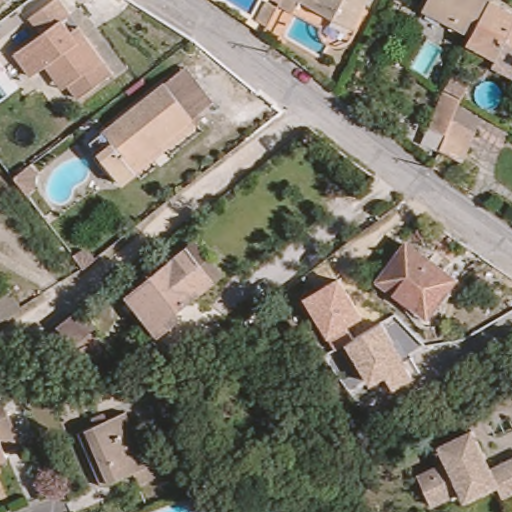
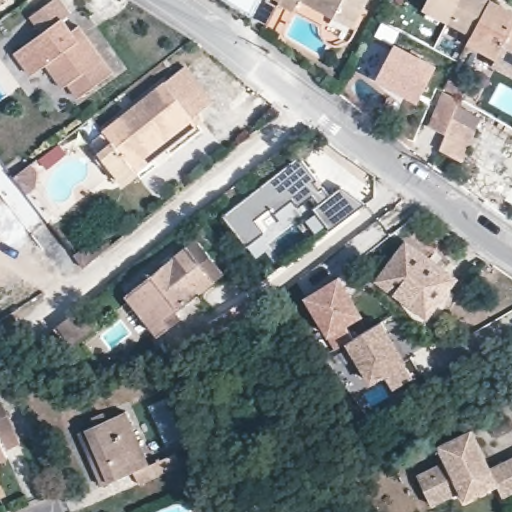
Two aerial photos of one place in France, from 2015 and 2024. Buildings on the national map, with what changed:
unchanged [(0,8),(0,0),(6,0),(8,2),(0,8)]
unchanged [(35,11),(50,0),(69,0),(75,7),(67,13),(77,25),(84,20),(117,66),(83,91),(73,79),(68,82),(50,59),(37,69),(20,47),(47,27),(35,11)]
unchanged [(356,27),(304,1),(298,12),(284,5),(286,0),(370,0),(356,27)]
unchanged [(472,30),(424,5),(426,0),(487,0),(472,30)]
unchanged [(487,0),(500,0),(512,7),(512,46),(503,42),(497,53),(467,38),(472,30),(487,0)]
unchanged [(262,21),(272,1),(283,8),(273,28),(262,21)]
new [(394,42),(436,64),(416,103),(374,81),(394,42)]
unchanged [(123,189),(99,158),(90,147),(103,137),(155,95),(165,87),(185,72),(212,106),(193,121),(198,129),(138,177),(123,189)]
unchanged [(456,74),(474,84),(466,99),(465,98),(449,89),(456,74)]
unchanged [(468,163),(444,151),(451,133),(434,127),(447,94),(464,101),(457,118),(480,131),(468,163)]
new [(304,160),(323,184),(319,187),(325,194),(329,191),(336,200),(325,208),(319,200),(304,212),(298,204),(280,218),(275,213),(261,225),(270,237),(252,252),(228,221),(304,160)]
unchanged [(29,163),(35,171),(34,186),(26,192),(13,176),(29,163)]
unchanged [(176,315),(153,335),(122,297),(183,248),(193,240),(219,273),(209,280),(172,310),(176,315)]
unchanged [(460,279),(432,316),(383,281),(412,243),(460,279)]
unchanged [(303,299),(340,277),(363,316),(347,326),(354,339),(383,323),(404,359),(410,355),(420,373),(414,379),(395,391),(387,377),(372,385),(348,346),(337,353),(328,339),(303,299)]
unchanged [(21,307),(0,320),(0,292),(7,288),(21,307)]
unchanged [(278,332),(220,343),(217,339),(274,296),(278,332)]
unchanged [(80,306),(94,323),(68,343),(55,326),(80,306)]
unchanged [(0,445),(0,405),(16,439),(0,445)]
unchanged [(154,460),(181,449),(187,462),(144,480),(139,467),(107,480),(84,428),(131,408),(154,460)]
unchanged [(444,459),(437,445),(470,428),(482,452),(486,461),(489,467),(512,454),(512,488),(499,494),(493,483),(462,498),(458,490),(429,504),(420,484),(415,475),(427,469),(444,459)]
unchanged [(0,454),(0,445),(3,453),(0,454)]
unchanged [(263,512),(276,507),(278,512),(263,512)]

